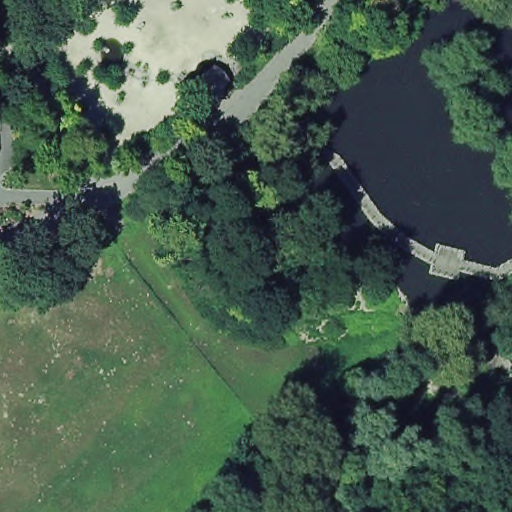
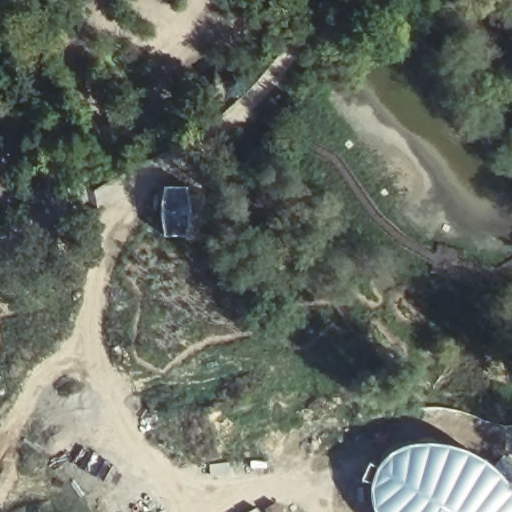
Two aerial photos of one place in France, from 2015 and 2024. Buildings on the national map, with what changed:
new [(377,463),(390,449),(404,443),(426,440),(447,441),(467,447),(487,458),(502,471),(512,485),(512,512),(374,512),(371,505),(369,482),(360,479),(369,459),(377,463)]
new [(279,500),(286,512),(261,512),(279,500)]
new [(257,507),(260,512),(248,512),(257,507)]

